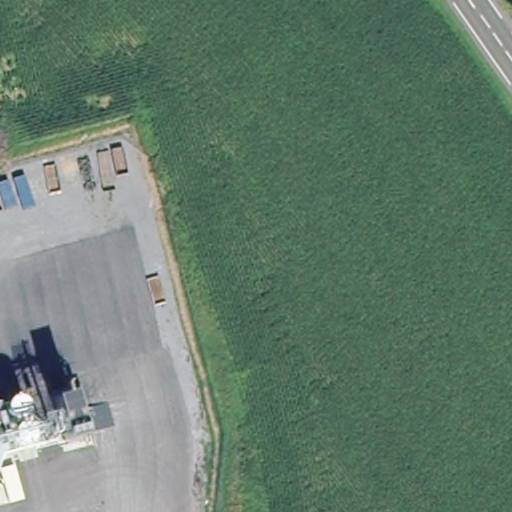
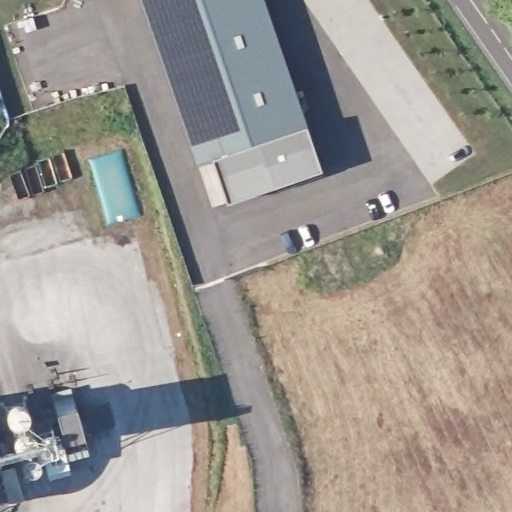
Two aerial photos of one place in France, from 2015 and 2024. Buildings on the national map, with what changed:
new [(306,122),(321,168),(225,200),(225,197),(210,205),(140,0),(264,0),(306,122)]
unchanged [(55,417),(54,400),(74,395),(86,439),(35,447),(30,423),(55,417)]

